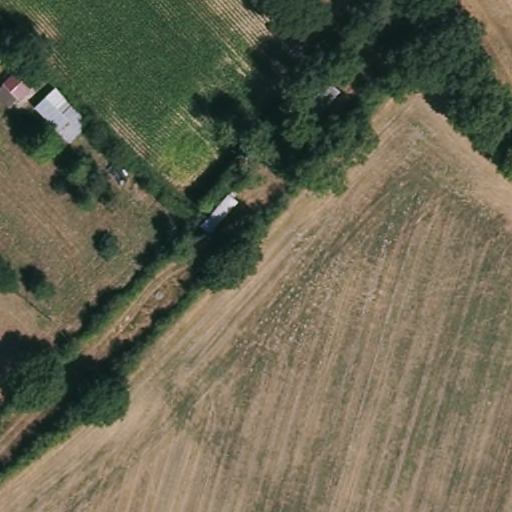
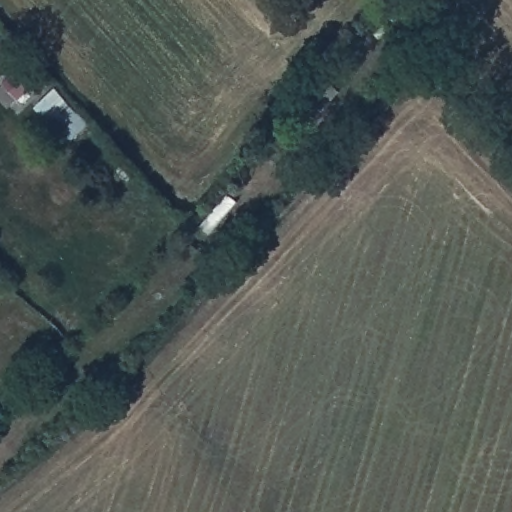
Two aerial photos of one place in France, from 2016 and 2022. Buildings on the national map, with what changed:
[]

